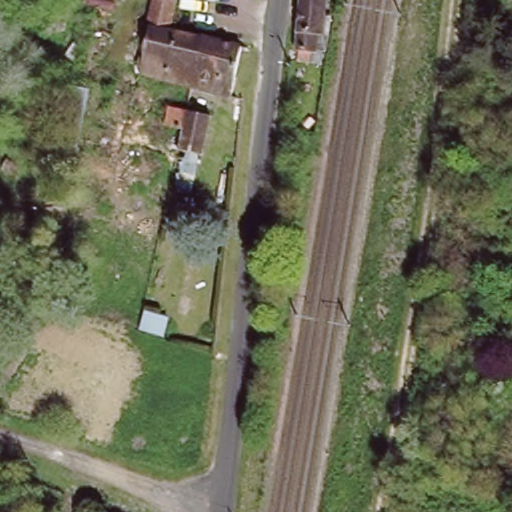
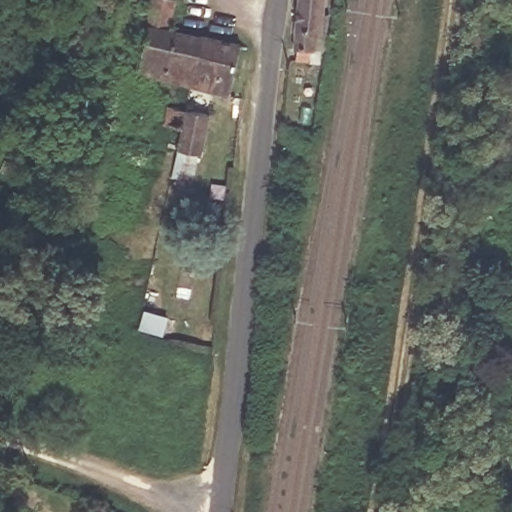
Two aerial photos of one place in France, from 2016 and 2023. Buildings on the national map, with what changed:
unchanged [(183,83),(147,73),(150,55),(156,23),(154,22),(157,0),(158,0),(162,0),(177,2),(173,28),(205,36),(195,86),(183,83)]
unchanged [(322,32),(320,49),(316,49),(315,59),(296,57),(302,0),(329,0),(326,32),(322,32)]
unchanged [(231,95),(195,86),(205,36),(239,45),(231,95)]
unchanged [(57,142),(70,89),(95,92),(83,149),(57,142)]
unchanged [(210,156),(188,151),(190,144),(190,141),(177,139),(179,129),(172,128),(175,111),(195,115),(217,119),(210,156)]

